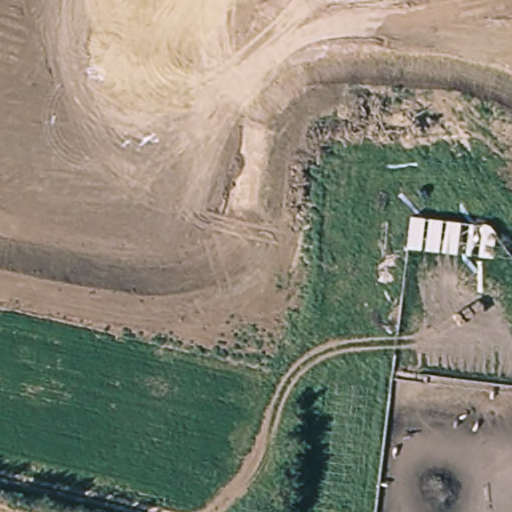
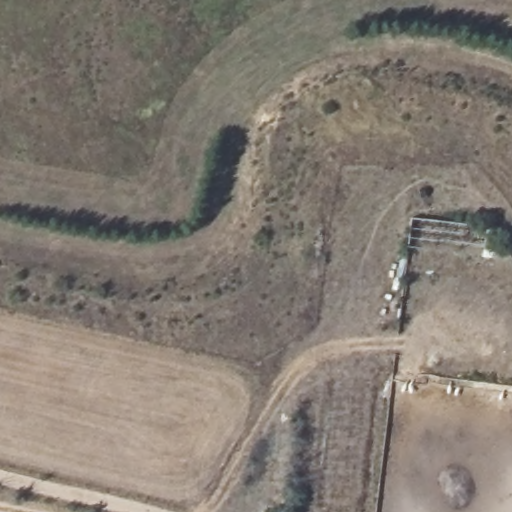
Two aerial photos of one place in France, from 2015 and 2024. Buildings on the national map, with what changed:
unchanged [(409,219),(487,224),(509,252),(407,250),(409,219)]

